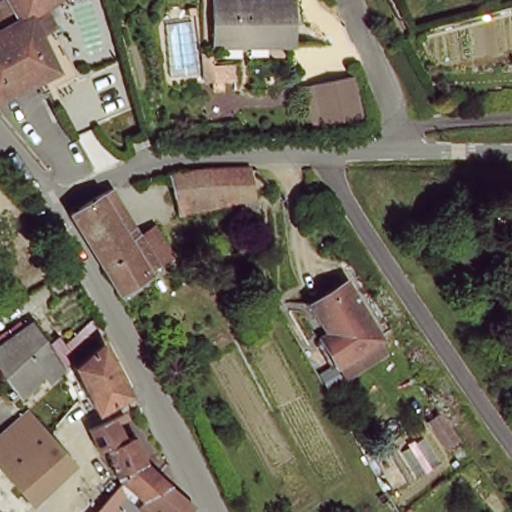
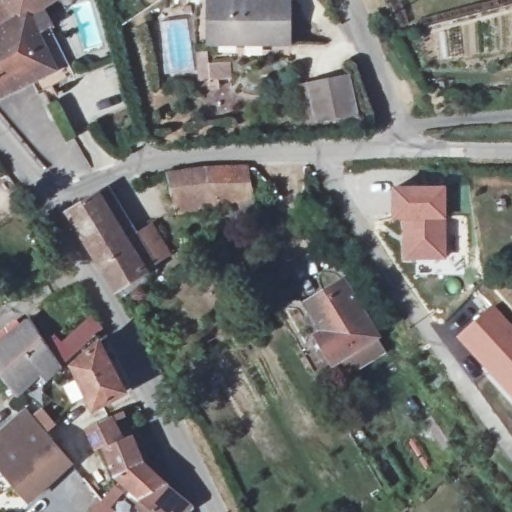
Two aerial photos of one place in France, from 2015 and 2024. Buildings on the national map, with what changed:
unchanged [(18,21),(21,19),(10,0),(52,0),(30,14),(57,69),(0,97),(0,3),(6,0),(18,21)]
unchanged [(206,35),(207,0),(287,0),(286,45),(240,44),(205,43),(206,35)]
unchanged [(356,121),(316,125),(313,86),(353,82),(356,121)]
unchanged [(178,214),(170,175),(208,168),(246,166),(246,169),(249,195),(178,214)]
new [(391,186),(446,185),(446,260),(401,261),(400,220),(391,220),(391,186)]
unchanged [(120,302),(114,291),(66,218),(107,193),(134,237),(153,230),(168,257),(141,274),(147,286),(120,302)]
unchanged [(343,374),(336,360),(332,362),(322,342),(331,338),(311,298),(348,280),(378,340),(376,340),(383,356),(343,374)]
new [(456,336),(494,303),(512,324),(512,400),(456,336)]
unchanged [(27,394),(20,401),(12,394),(17,388),(0,365),(0,337),(30,315),(58,360),(43,374),(40,379),(33,387),(27,394)]
unchanged [(123,394),(91,408),(71,365),(98,342),(123,394)]
unchanged [(0,464),(0,425),(20,407),(23,404),(76,458),(30,495),(0,464)]
unchanged [(430,414),(448,404),(465,433),(447,443),(430,414)]
unchanged [(117,479),(104,444),(95,447),(85,428),(110,417),(123,439),(132,438),(143,465),(193,509),(187,512),(156,512),(156,511),(117,479)]
new [(110,509),(108,512),(90,512),(100,501),(110,509)]

